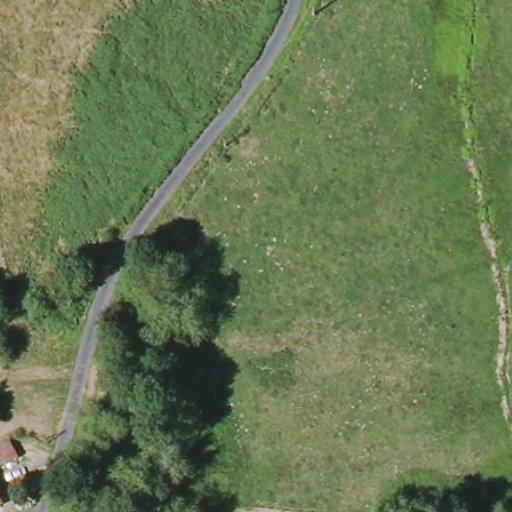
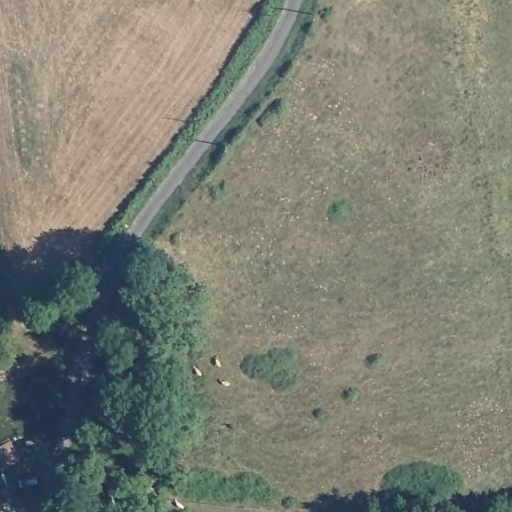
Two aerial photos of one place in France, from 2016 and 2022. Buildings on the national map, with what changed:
unchanged [(140,313),(167,319),(163,342),(135,336),(140,313)]

